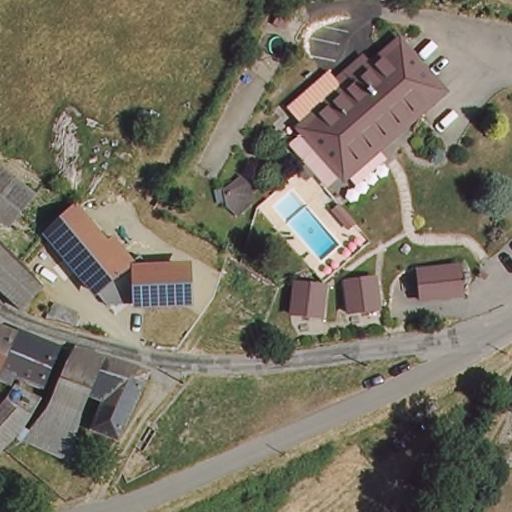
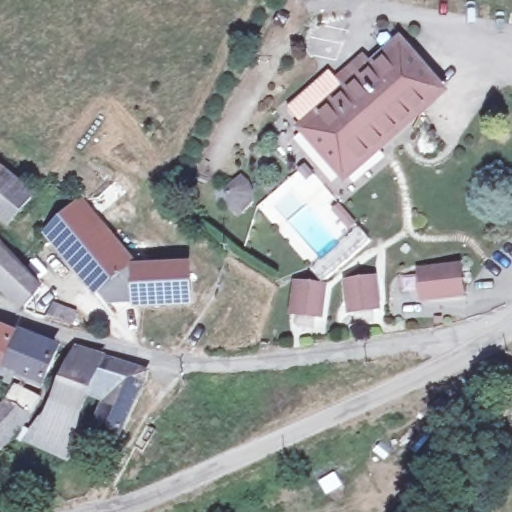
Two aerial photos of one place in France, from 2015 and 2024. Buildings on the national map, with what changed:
unchanged [(411,120),(341,180),(285,116),(328,79),(337,89),(365,64),(396,36),(405,46),(397,51),(436,98),(411,120)]
unchanged [(10,218),(0,210),(0,169),(31,195),(10,218)]
unchanged [(227,187),(235,181),(245,182),(250,188),(249,198),(236,208),(230,200),(234,196),(227,187)]
unchanged [(135,304),(106,306),(97,296),(95,297),(42,234),(78,204),(105,240),(111,235),(133,262),(135,304)]
unchanged [(0,253),(2,251),(12,260),(41,291),(37,295),(20,312),(19,311),(0,292),(0,253)]
unchanged [(195,310),(135,313),(133,262),(193,261),(195,310)]
unchanged [(421,302),(417,268),(463,264),(466,298),(421,302)]
unchanged [(343,281),(380,275),(382,310),(347,315),(343,281)]
unchanged [(289,315),(293,280),(328,286),(322,319),(289,315)]
unchanged [(61,295),(81,303),(78,315),(56,307),(61,295)]
unchanged [(8,370),(5,379),(0,376),(0,327),(22,336),(8,370)]
unchanged [(22,336),(62,351),(50,385),(8,370),(22,336)]
unchanged [(77,347),(148,372),(118,437),(100,434),(113,405),(97,398),(82,427),(47,411),(58,387),(77,347)]
unchanged [(0,411),(5,406),(10,398),(14,390),(43,400),(39,415),(2,461),(0,458),(0,411)]
unchanged [(47,411),(82,427),(75,467),(31,447),(26,445),(44,418),(47,411)]
unchanged [(512,413),(512,417),(510,416),(512,413)]

